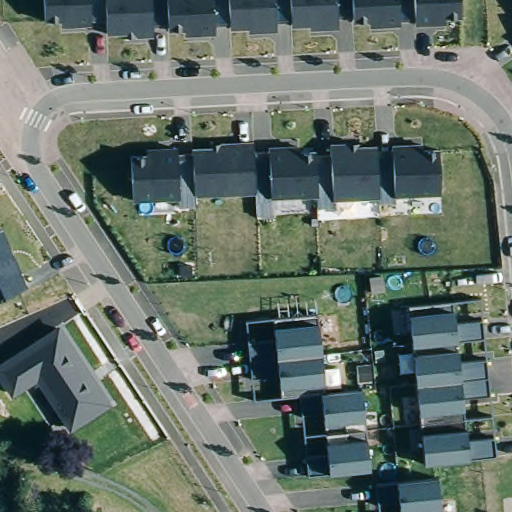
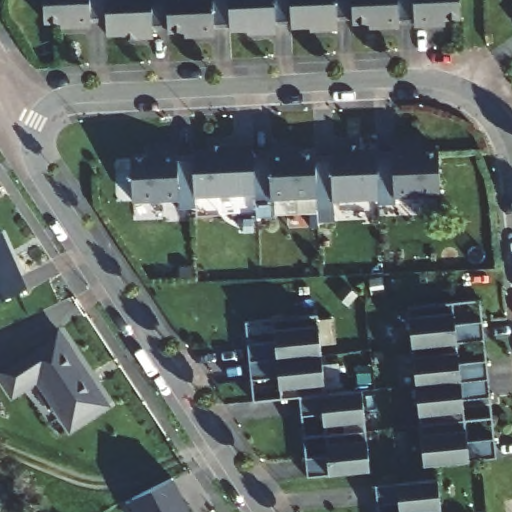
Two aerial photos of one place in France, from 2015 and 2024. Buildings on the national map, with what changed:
unchanged [(215,31),(183,33),(182,25),(152,25),(153,34),(130,34),(130,30),(107,31),(105,22),(62,25),(61,19),(47,20),(46,0),(214,0),(215,31)]
unchanged [(278,30),(248,31),(248,23),(231,24),(230,0),(277,0),(278,30)]
unchanged [(340,26),(312,28),(311,24),(292,25),(290,0),(339,0),(340,26)]
unchanged [(402,25),(370,27),(367,20),(355,20),(353,0),(401,0),(402,25)]
unchanged [(461,17),(448,18),(448,24),(417,24),(415,0),(460,0),(461,17)]
unchanged [(146,151),(145,145),(177,144),(178,164),(193,163),(193,147),(215,146),(215,141),(253,140),(255,190),(196,193),(197,204),(176,206),(175,197),(137,199),(133,151),(146,151)]
unchanged [(295,143),(295,149),(316,148),(317,171),(332,170),(331,143),(358,141),(360,146),(378,145),(379,164),(393,164),(392,144),(440,142),(442,192),(395,194),(395,201),(377,203),(377,195),(335,197),(335,205),(318,204),(316,195),(272,198),(270,143),(295,143)]
unchanged [(0,300),(0,228),(5,226),(30,288),(0,300)]
unchanged [(453,298),(456,321),(481,318),(482,336),(457,339),(460,360),(485,358),(488,393),(465,396),(468,439),(492,437),(493,454),(468,456),(467,460),(425,464),(415,349),(410,303),(453,298)]
unchanged [(318,313),(324,389),(362,386),(369,466),(307,473),(305,450),(327,448),(322,394),(280,398),(275,351),(248,354),(245,320),(318,313)]
unchanged [(69,429),(35,381),(10,397),(0,382),(0,365),(62,326),(112,399),(69,429)]
unchanged [(443,512),(399,512),(396,479),(440,476),(443,512)]
new [(187,512),(137,512),(132,501),(172,481),(187,512)]

